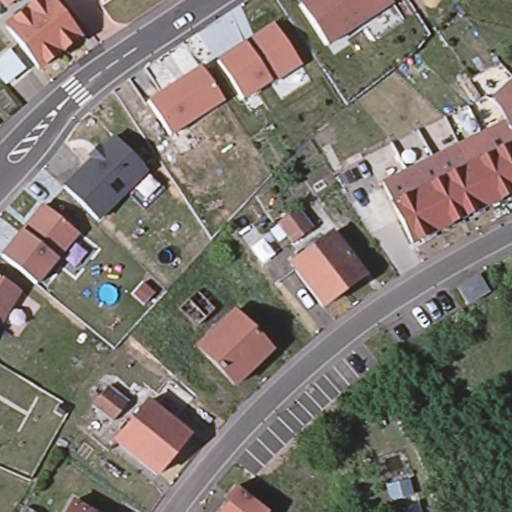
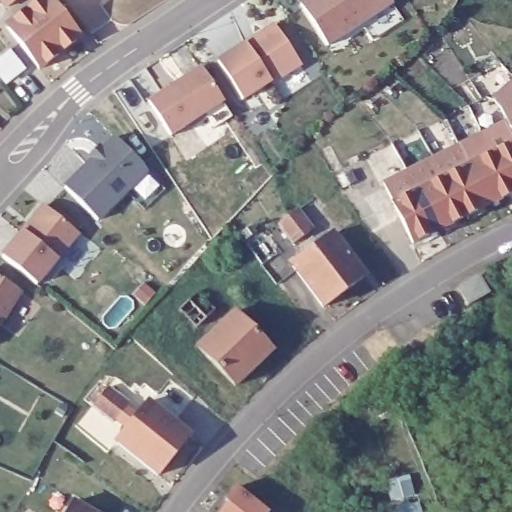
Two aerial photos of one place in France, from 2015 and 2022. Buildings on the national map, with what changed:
unchanged [(0,0),(20,0),(8,11),(0,2),(0,0)]
unchanged [(51,0),(82,38),(45,69),(11,28),(43,0),(51,0)]
unchanged [(103,0),(107,0),(104,2),(103,0)]
unchanged [(362,24),(329,46),(302,5),(309,0),(389,0),(392,5),(362,24)]
unchanged [(302,65),(272,85),(271,83),(244,100),(219,63),(247,44),(257,38),(276,26),(302,65)]
unchanged [(150,102),(203,67),(226,101),(172,136),(150,102)]
unchanged [(395,205),(385,184),(410,171),(458,148),(461,146),(462,146),(484,135),(509,122),(496,99),(512,84),(512,195),(490,206),(441,231),(415,244),(395,205)]
unchanged [(117,138),(144,165),(148,172),(99,222),(66,189),(117,138)]
unchanged [(46,206),(80,234),(38,285),(4,257),(46,206)]
unchanged [(300,207),(315,228),(294,244),(279,222),(300,207)]
unchanged [(250,243),(244,233),(254,226),(260,236),(250,243)]
unchanged [(334,234),(366,277),(325,308),(292,265),(334,234)]
unchanged [(490,294),(470,306),(460,289),(479,277),(490,294)]
unchanged [(4,327),(0,325),(0,281),(22,293),(4,327)]
unchanged [(200,292),(217,311),(198,328),(181,310),(200,292)]
unchanged [(236,312),(274,351),(237,387),(199,348),(236,312)]
unchanged [(111,387),(130,403),(114,423),(94,407),(111,387)]
unchanged [(150,402),(192,436),(159,476),(117,442),(150,402)]
unchanged [(229,504),(225,501),(236,487),(267,512),(222,512),(229,504)]
unchanged [(75,503),(90,512),(69,512),(75,503)]

